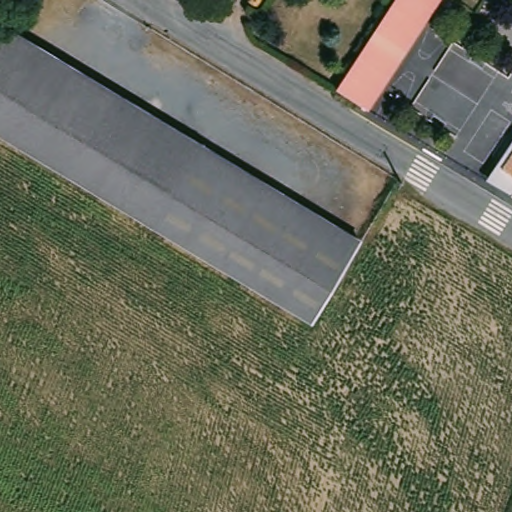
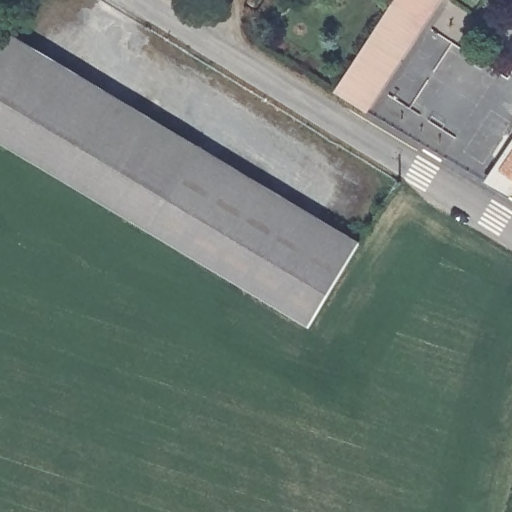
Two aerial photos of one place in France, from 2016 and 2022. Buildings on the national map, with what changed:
unchanged [(441,1),(374,110),(345,95),(399,0),(439,0),(440,0),(441,1)]
unchanged [(0,45),(11,28),(204,145),(156,226),(0,132),(0,45)]
unchanged [(483,170),(493,156),(512,128),(512,186),(483,170)]
unchanged [(204,145),(363,242),(317,323),(156,226),(204,145)]

